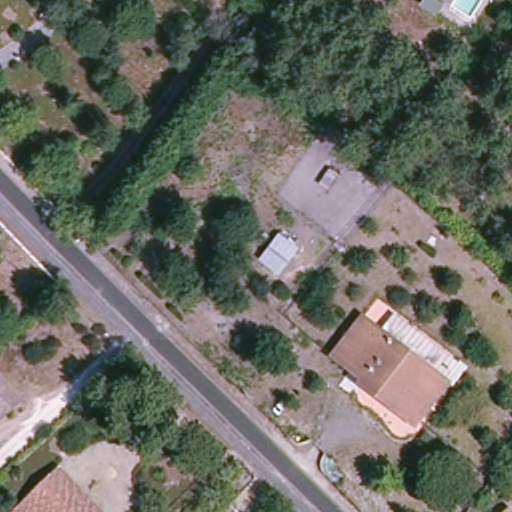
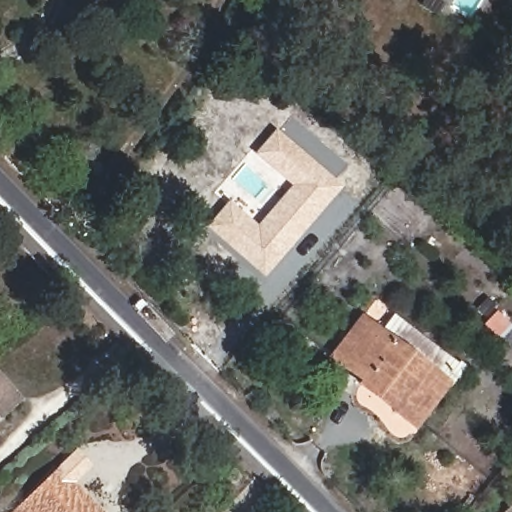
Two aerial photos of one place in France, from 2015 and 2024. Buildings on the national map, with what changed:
unchanged [(430,4),(425,0),(433,0),(430,4)]
new [(228,200),(257,224),(289,186),(253,153),(275,128),(342,187),(263,278),(205,227),(228,200)]
unchanged [(417,424),(388,406),(392,400),(348,369),(332,359),(358,318),(375,329),(446,378),(417,424)]
unchanged [(19,400),(5,412),(0,417),(0,380),(19,400)]
unchanged [(106,512),(12,512),(60,467),(106,512)]
unchanged [(512,512),(510,512),(512,510),(512,512)]

